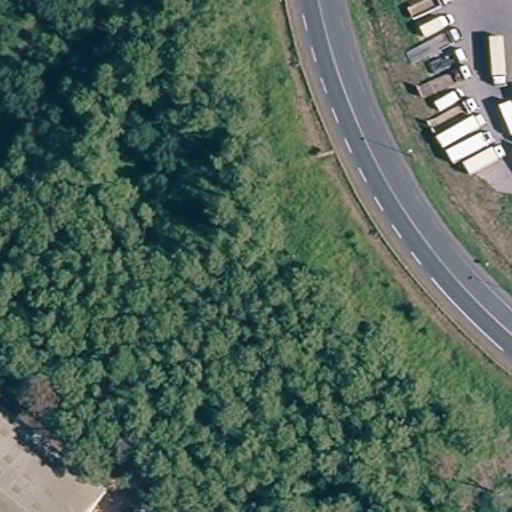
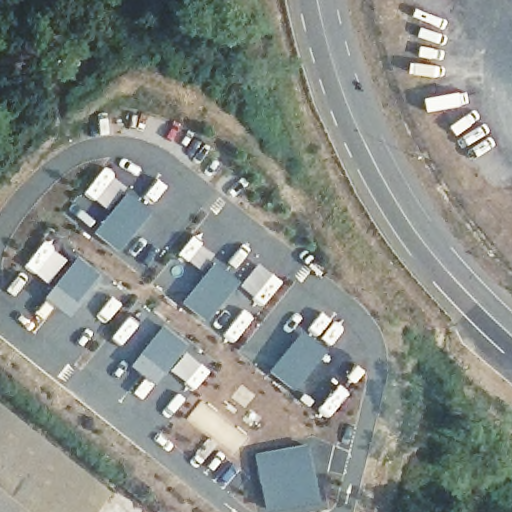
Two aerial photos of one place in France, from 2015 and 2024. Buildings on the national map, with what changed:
new [(153,211),(120,252),(93,231),(126,190),(153,211)]
new [(106,275),(82,305),(53,283),(76,254),(106,275)]
new [(241,282),(210,322),(182,300),(214,261),(241,282)]
new [(191,347),(168,373),(139,351),(164,325),(191,347)]
new [(327,350),(297,390),(269,368),(299,329),(327,350)]
unchanged [(110,485),(88,512),(0,512),(0,398),(110,485)]
new [(320,501),(267,512),(254,455),(308,444),(320,501)]

